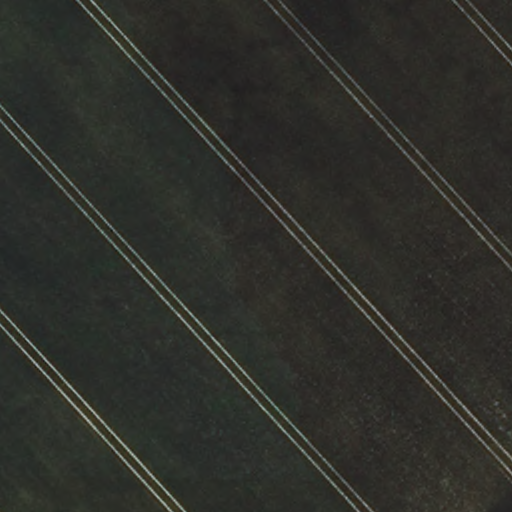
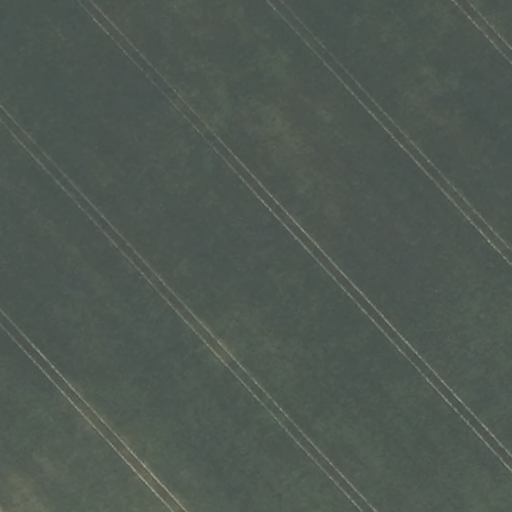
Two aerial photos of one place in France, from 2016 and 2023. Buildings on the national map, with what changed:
[]

